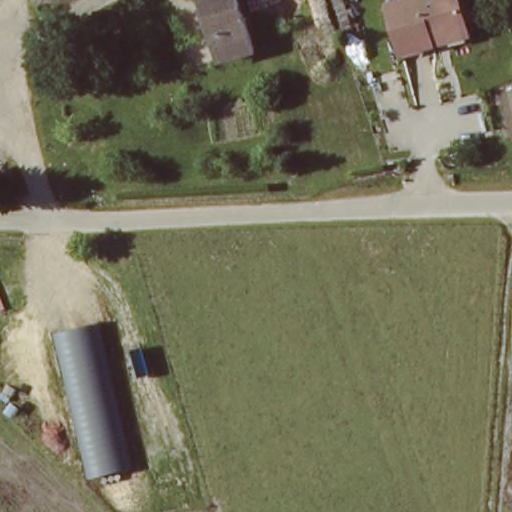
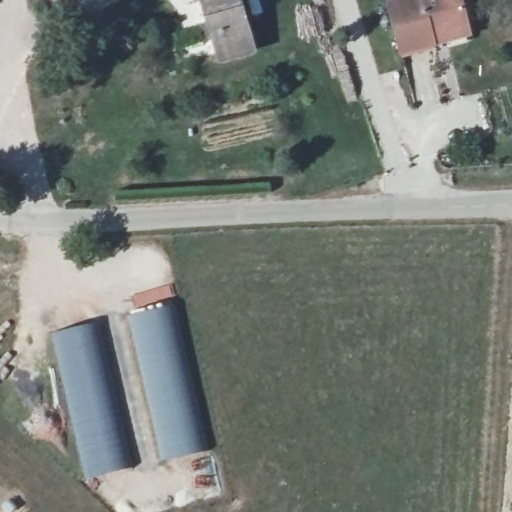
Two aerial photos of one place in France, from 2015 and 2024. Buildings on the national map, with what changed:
unchanged [(241,9),(252,48),(219,58),(209,26),(201,0),(238,0),(241,9)]
unchanged [(426,0),(465,0),(472,24),(459,28),(437,34),(441,46),(408,56),(395,9),(426,0)]
new [(175,308),(213,453),(165,466),(127,321),(175,308)]
unchanged [(86,481),(52,333),(98,325),(132,467),(86,481)]

